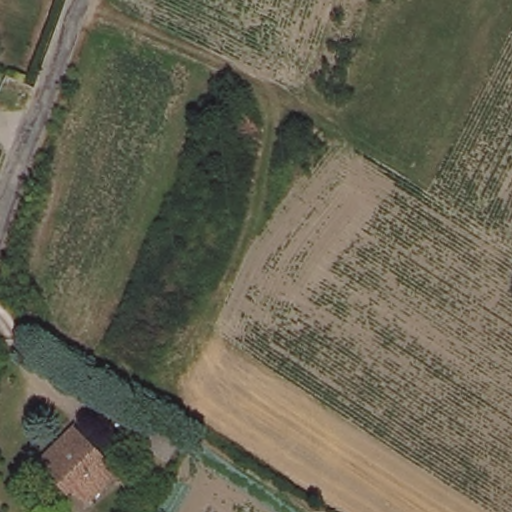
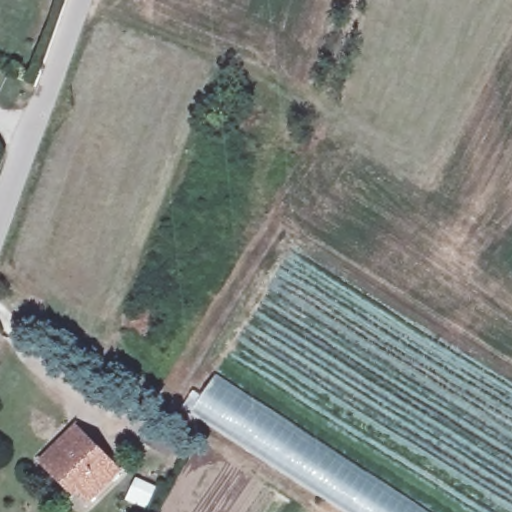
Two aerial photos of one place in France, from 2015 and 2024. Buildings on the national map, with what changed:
new [(200,393),(215,371),(433,512),(343,512),(316,495),(181,406),(193,388),(200,393)]
unchanged [(62,471),(57,477),(43,462),(74,432),(119,477),(90,502),(62,471)]
new [(135,476),(157,486),(146,510),(123,499),(135,476)]

